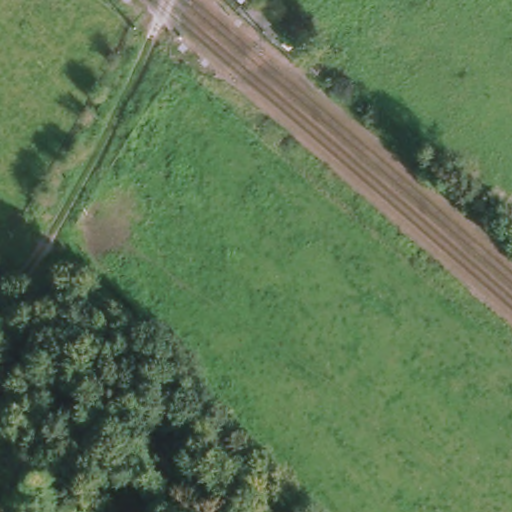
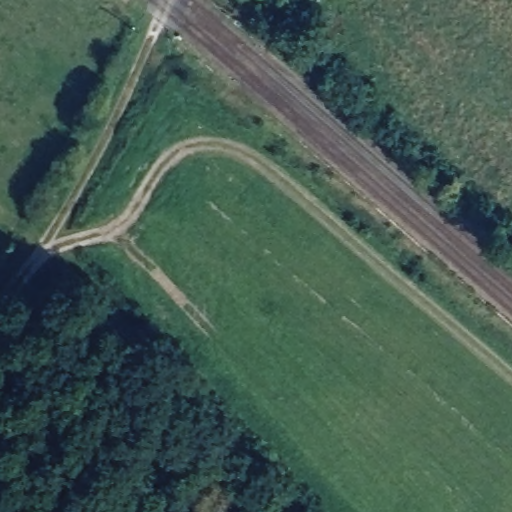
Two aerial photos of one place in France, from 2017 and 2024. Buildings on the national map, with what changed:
unchanged [(314,84),(298,70),(306,61),(323,75),(314,84)]

